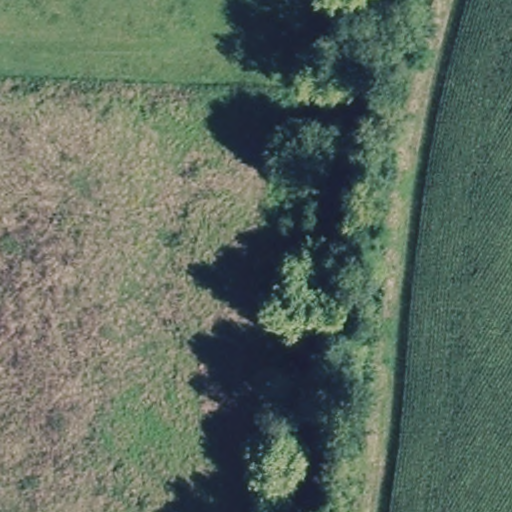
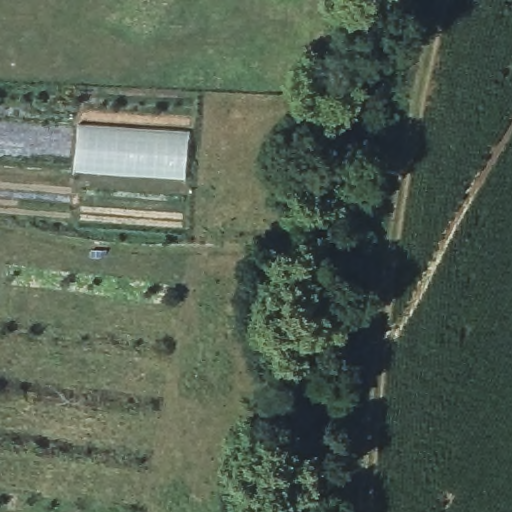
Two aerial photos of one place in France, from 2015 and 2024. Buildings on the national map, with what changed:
new [(186,176),(73,168),(77,121),(189,129),(186,176)]

